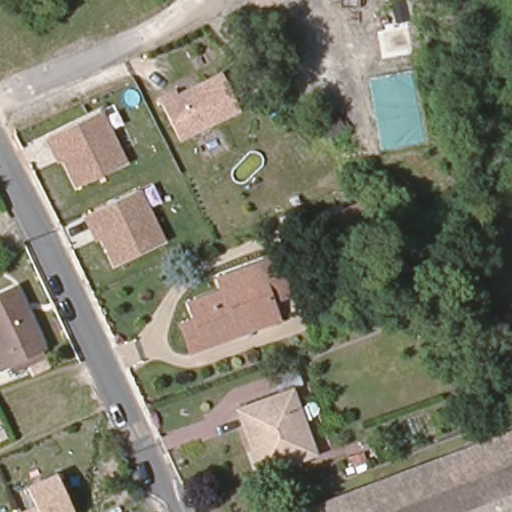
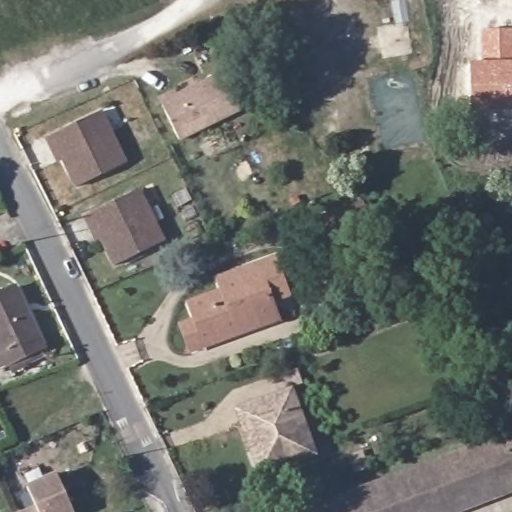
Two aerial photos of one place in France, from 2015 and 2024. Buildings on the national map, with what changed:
new [(469,63),(482,62),(480,30),(512,29),(512,111),(471,113),(469,63)]
unchanged [(174,128),(158,95),(173,87),(175,91),(219,70),(237,104),(237,105),(178,135),(174,128)]
unchanged [(52,155),(44,137),(98,111),(118,154),(123,164),(73,187),(66,173),(60,160),(56,162),(52,155)]
unchanged [(94,229),(86,212),(140,186),(165,238),(115,261),(102,234),(98,237),(94,229)]
unchanged [(344,249),(342,247),(339,239),(330,243),(324,228),(333,224),(329,215),(369,200),(374,199),(397,224),(383,230),(367,236),(369,240),(370,243),(345,253),(344,249)]
unchanged [(181,328),(197,322),(190,302),(213,294),(224,290),(219,278),(276,257),(280,270),(289,294),(271,302),(277,321),(261,327),(238,335),(190,353),(181,328)]
unchanged [(10,372),(6,365),(0,367),(0,292),(16,286),(44,347),(47,355),(10,372)]
unchanged [(254,453),(238,410),(290,390),(314,456),(269,473),(262,475),(254,453)]
unchanged [(512,447),(508,437),(512,436),(512,447)]
unchanged [(512,484),(436,512),(305,512),(508,437),(512,447),(512,484)]
unchanged [(72,501),(49,512),(8,512),(21,506),(22,508),(36,501),(26,478),(56,464),(72,501)]
unchanged [(512,494),(463,512),(436,512),(512,484),(512,494)]
unchanged [(116,512),(112,512),(115,511),(116,512)]

